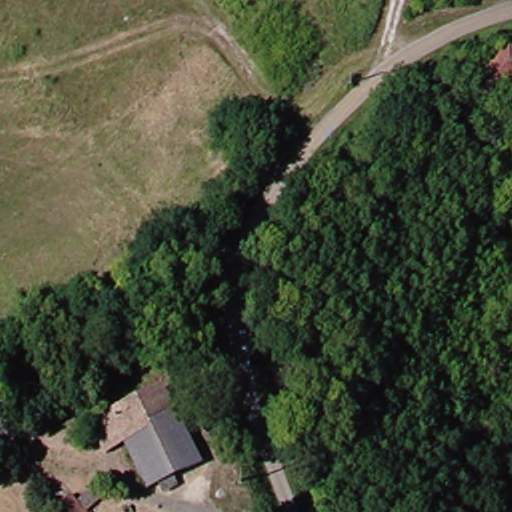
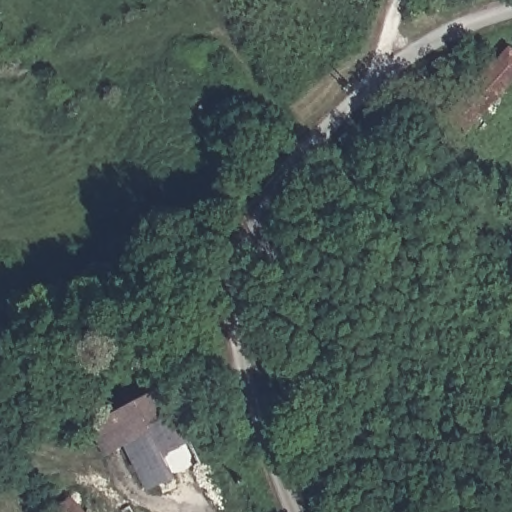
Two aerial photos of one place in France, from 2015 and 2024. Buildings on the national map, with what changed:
unchanged [(504,51),(512,58),(512,80),(465,139),(445,123),(504,51)]
unchanged [(427,67),(446,86),(426,108),(404,87),(427,67)]
unchanged [(154,488),(146,492),(125,449),(101,460),(86,432),(104,423),(98,410),(110,403),(116,416),(165,390),(204,463),(168,482),(171,489),(160,497),(154,488)]
unchanged [(76,508),(96,493),(104,503),(94,512),(61,512),(72,503),(76,508)]

